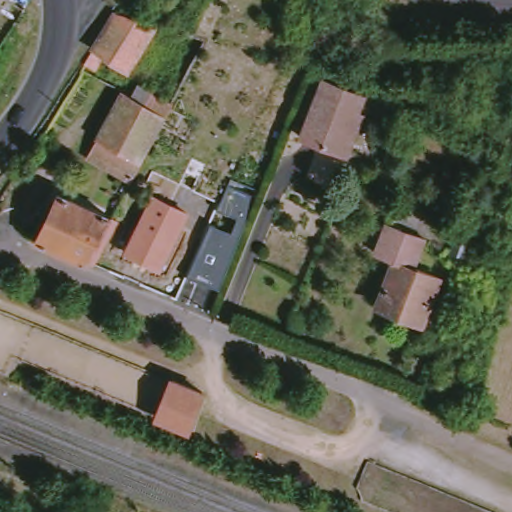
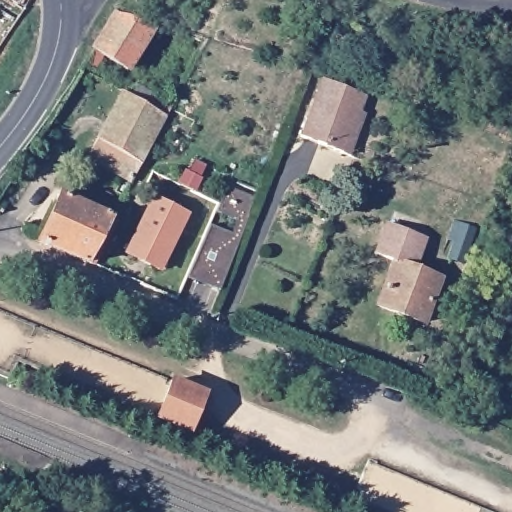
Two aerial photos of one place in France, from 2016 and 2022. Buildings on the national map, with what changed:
unchanged [(156,20),(127,65),(105,51),(94,66),(85,60),(115,9),(156,20)]
unchanged [(355,154),(350,151),(309,136),(330,80),(372,96),(365,112),(371,114),(355,154)]
unchanged [(155,95),(177,106),(172,117),(158,142),(114,117),(129,91),(150,104),(155,95)]
unchanged [(158,142),(147,164),(102,139),(114,117),(158,142)]
unchanged [(147,164),(137,183),(90,158),(102,139),(147,164)]
unchanged [(210,225),(232,233),(237,220),(217,212),(229,187),(257,199),(220,290),(188,276),(210,225)]
unchanged [(187,215),(160,271),(159,270),(128,255),(127,254),(154,199),(187,215)]
unchanged [(117,224),(94,268),(42,247),(64,201),(117,224)]
unchanged [(475,229),(463,263),(448,258),(454,241),(449,239),(455,222),(475,229)]
unchanged [(430,245),(419,274),(444,284),(427,328),(382,310),(400,266),(380,259),(392,230),(430,245)]
unchanged [(195,432),(163,419),(179,382),(210,396),(195,432)]

